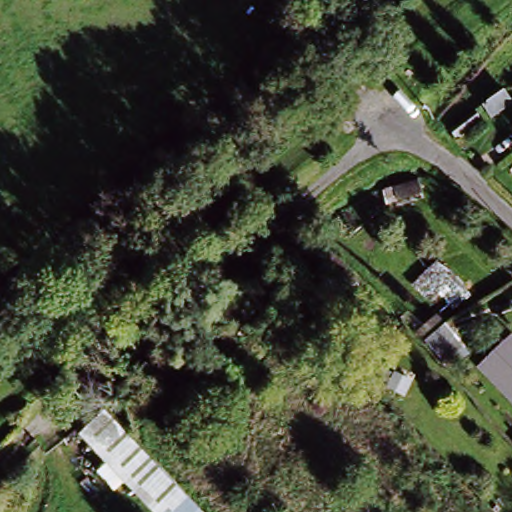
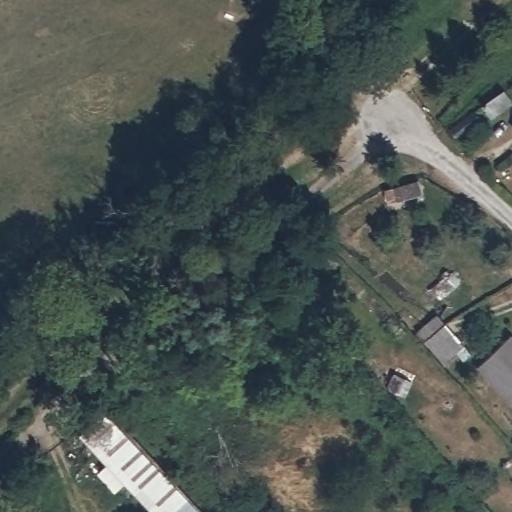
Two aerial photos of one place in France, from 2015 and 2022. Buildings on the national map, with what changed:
unchanged [(512,100),(512,103),(475,130),(458,112),(497,82),(512,100)]
unchanged [(441,258),(410,284),(391,267),(427,240),(441,258)]
unchanged [(470,294),(448,306),(438,289),(422,300),(415,292),(444,267),(470,294)]
unchanged [(467,352),(446,370),(437,360),(439,358),(415,329),(432,315),(456,343),(458,342),(467,352)]
unchanged [(482,363),(512,337),(512,398),(482,363)]
unchanged [(192,512),(149,512),(77,434),(100,412),(192,512)]

